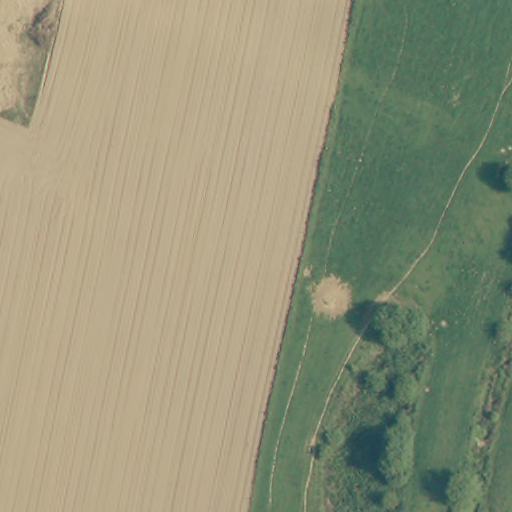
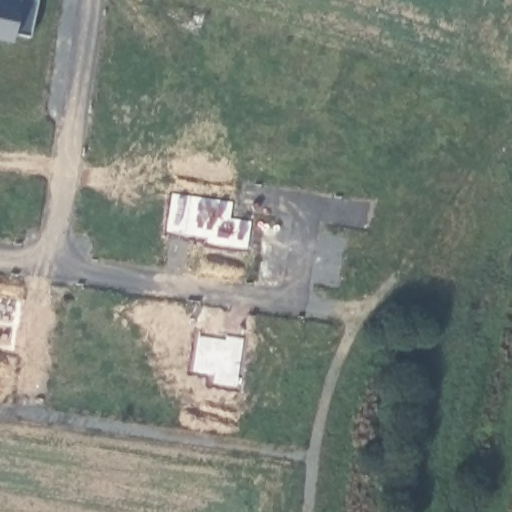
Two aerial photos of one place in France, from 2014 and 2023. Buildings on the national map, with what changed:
new [(0,0),(31,0),(36,1),(29,36),(12,33),(11,43),(0,41),(0,0)]

